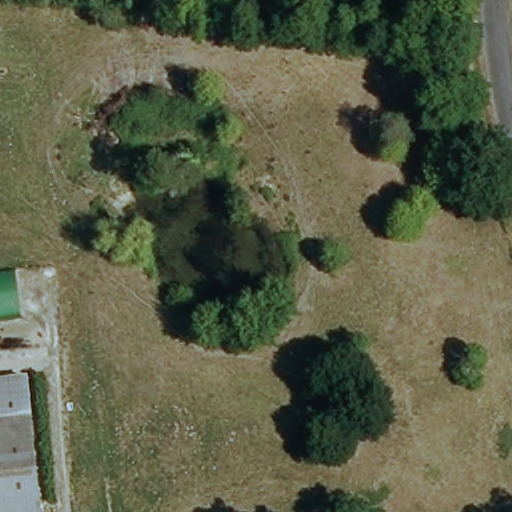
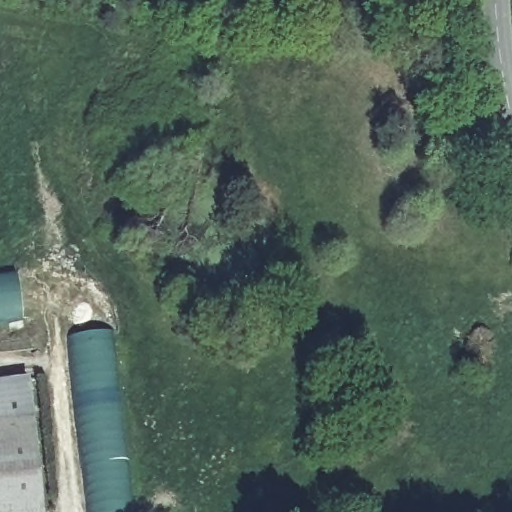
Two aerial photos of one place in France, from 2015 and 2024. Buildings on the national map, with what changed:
unchanged [(22,319),(0,323),(0,275),(17,273),(22,319)]
new [(132,512),(90,512),(72,337),(112,333),(132,512)]
unchanged [(32,379),(37,512),(0,512),(0,381),(32,379)]

